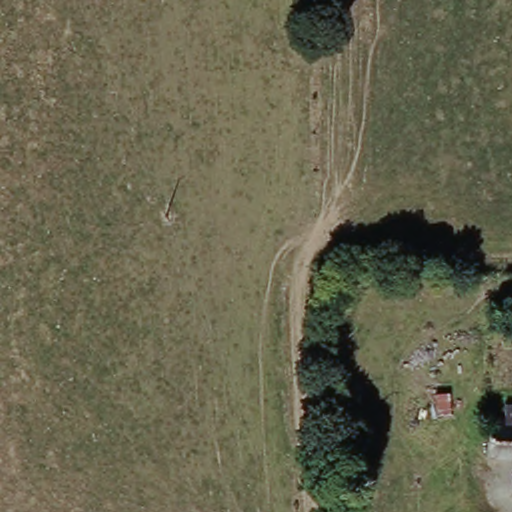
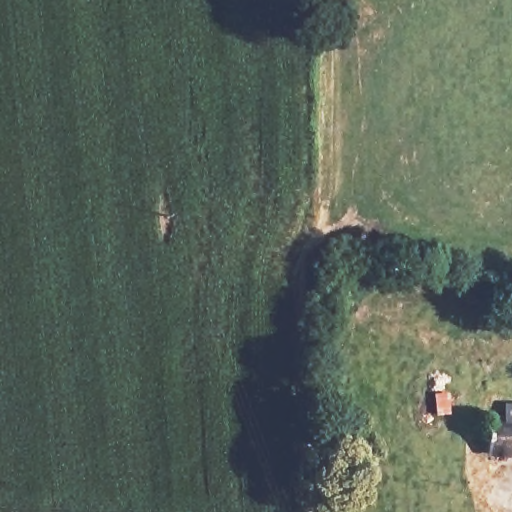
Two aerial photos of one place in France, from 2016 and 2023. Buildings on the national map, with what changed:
unchanged [(490,417),(508,418),(508,401),(512,401),(512,453),(487,452),(490,434),(490,417)]

